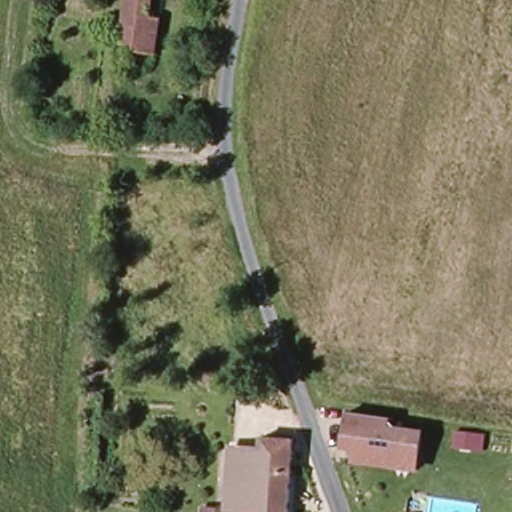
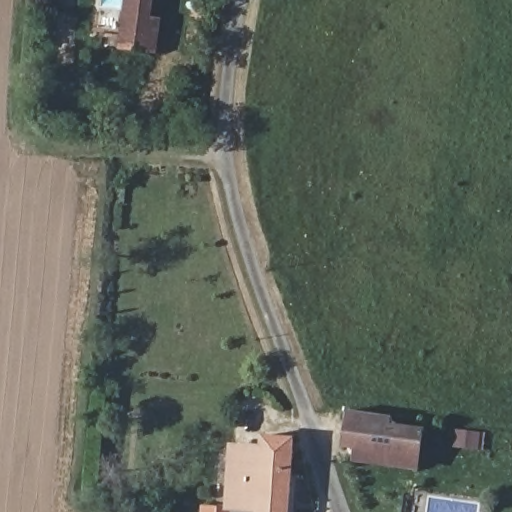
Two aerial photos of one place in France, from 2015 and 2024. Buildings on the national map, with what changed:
unchanged [(119,9),(120,0),(151,0),(150,13),(119,9)]
unchanged [(113,42),(119,9),(150,13),(170,16),(166,49),(113,42)]
unchanged [(346,421),(426,436),(422,460),(343,445),(346,421)]
unchanged [(297,464),(291,512),(261,512),(262,510),(234,508),(241,447),(269,449),(272,437),(300,439),(297,464)]
unchanged [(228,507),(228,512),(208,512),(209,506),(228,507)]

